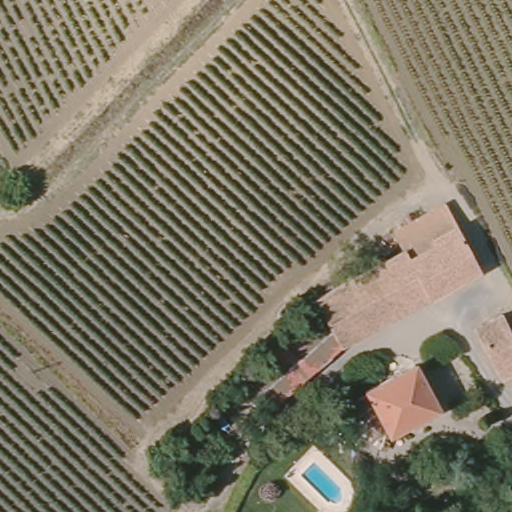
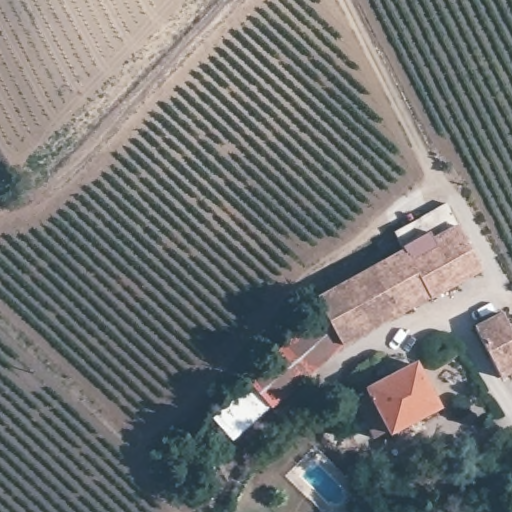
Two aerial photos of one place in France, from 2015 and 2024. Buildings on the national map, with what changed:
unchanged [(446,209),(459,232),(431,246),(434,252),(411,265),(406,255),(404,256),(394,237),(446,209)]
unchanged [(411,265),(434,252),(431,246),(459,232),(481,276),(429,305),(341,352),(271,415),(245,385),(322,317),(315,305),(404,256),(406,255),(411,265)]
unchanged [(512,322),(512,376),(505,380),(479,329),(508,314),(512,322)]
unchanged [(455,405),(405,431),(403,427),(391,433),(371,396),(384,390),(382,386),(431,360),(455,405)]

